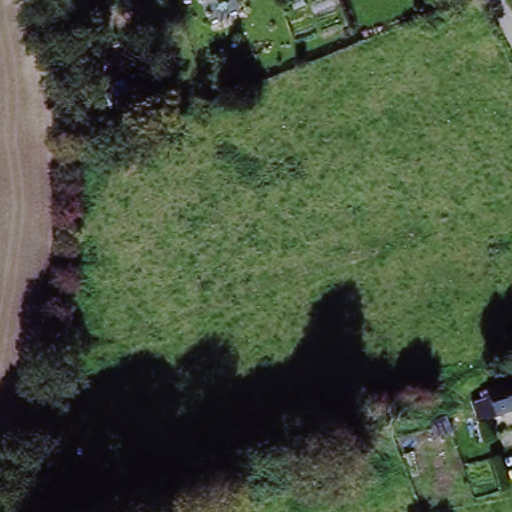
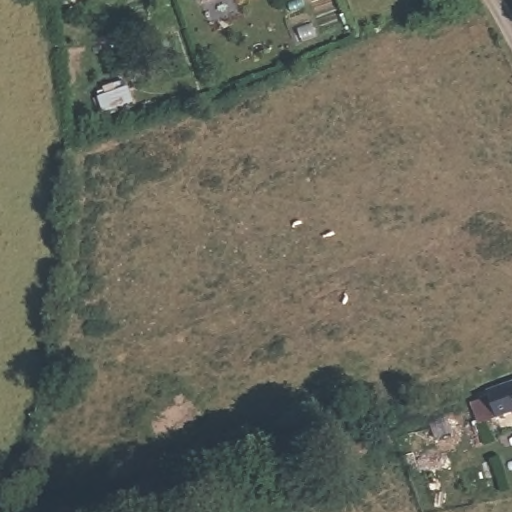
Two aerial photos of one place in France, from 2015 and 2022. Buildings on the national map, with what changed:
unchanged [(204,0),(207,0),(204,1),(204,0)]
unchanged [(512,411),(475,425),(467,400),(512,382),(512,411)]

